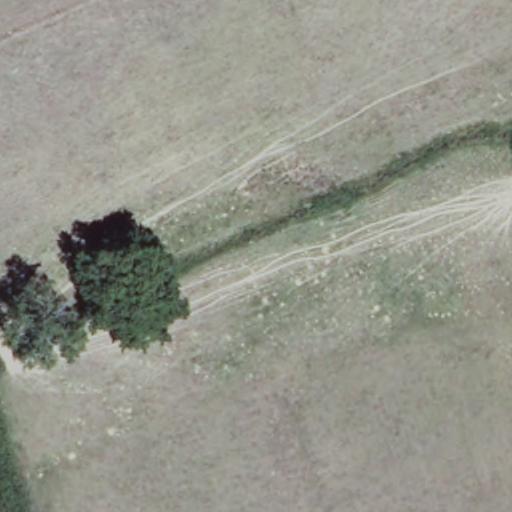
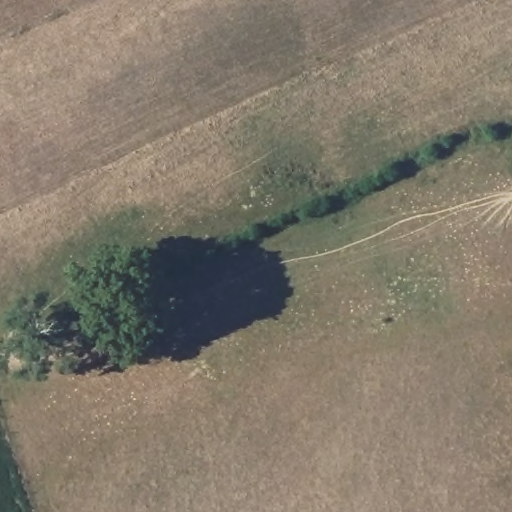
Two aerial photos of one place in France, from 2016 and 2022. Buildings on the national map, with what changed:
[]

